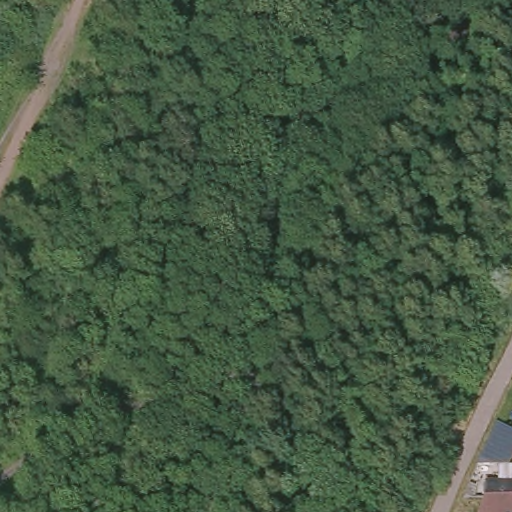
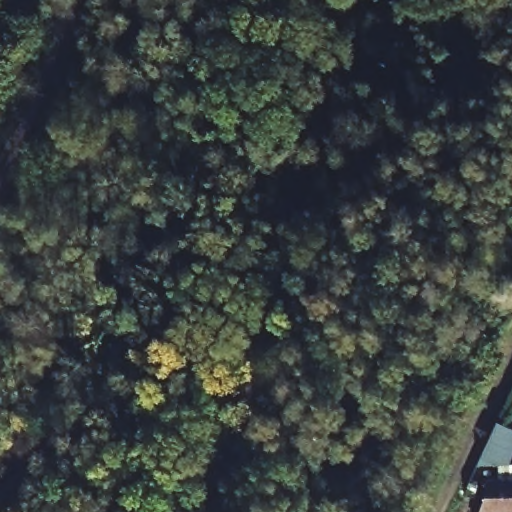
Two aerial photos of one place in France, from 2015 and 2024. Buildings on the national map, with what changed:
unchanged [(487,475),(499,475),(499,458),(500,456),(512,456),(512,489),(482,488),(487,475)]
unchanged [(512,489),(512,512),(474,512),(482,488),(512,489)]

